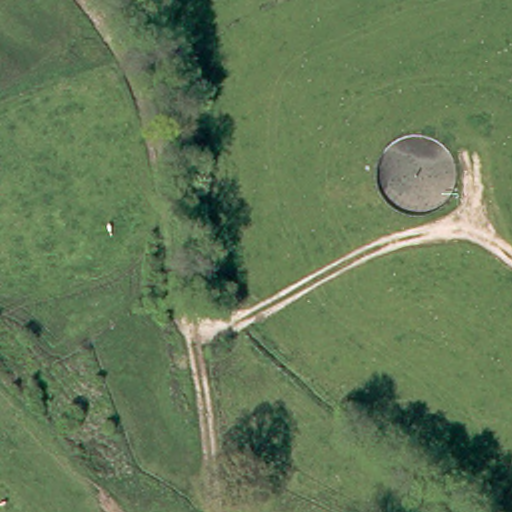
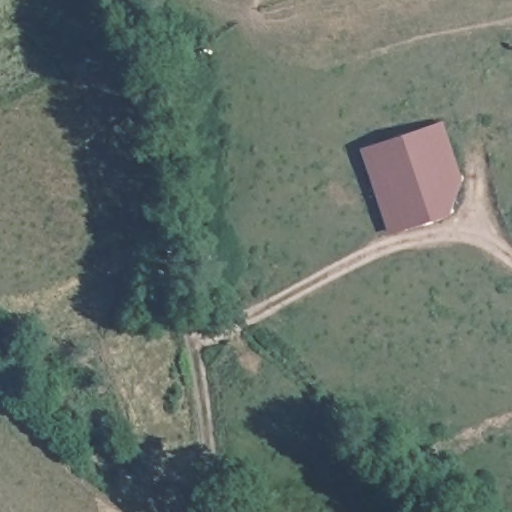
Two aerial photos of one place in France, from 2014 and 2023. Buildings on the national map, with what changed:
new [(445,120),(464,179),(453,212),(392,232),(361,147),(445,120)]

